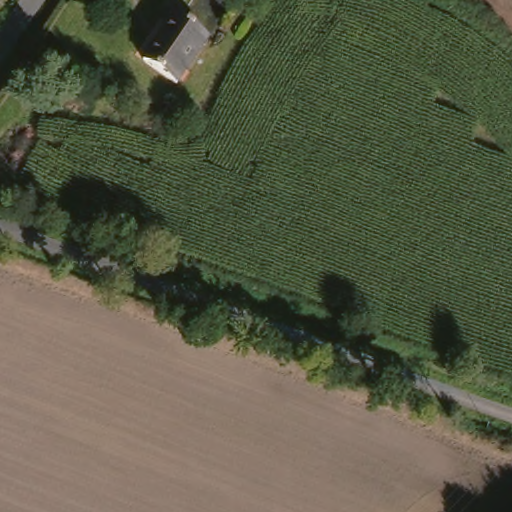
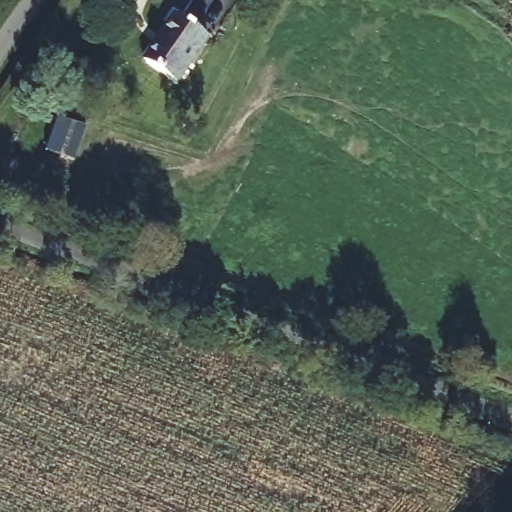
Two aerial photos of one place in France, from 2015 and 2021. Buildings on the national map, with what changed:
unchanged [(170,14),(203,36),(173,81),(140,60),(170,14)]
new [(57,116),(84,126),(82,135),(73,161),(44,151),(53,126),(57,116)]

